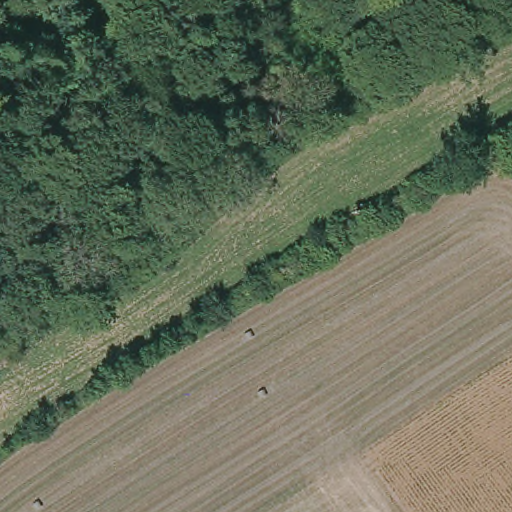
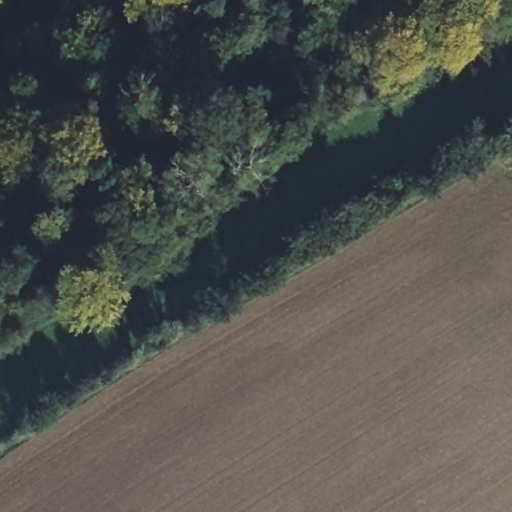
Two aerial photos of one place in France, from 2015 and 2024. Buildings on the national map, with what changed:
[]

